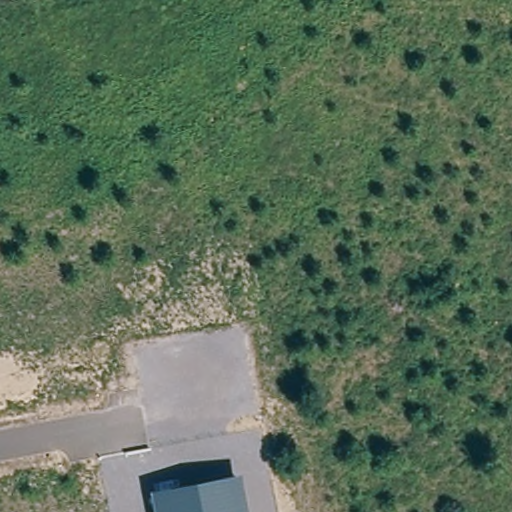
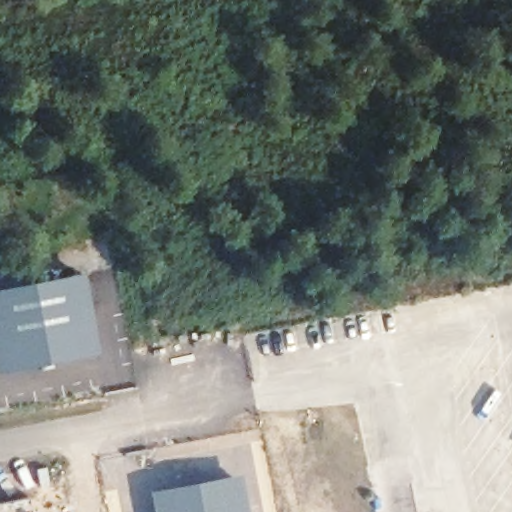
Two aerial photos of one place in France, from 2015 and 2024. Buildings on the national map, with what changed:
new [(83,277),(96,349),(0,368),(0,293),(83,277)]
unchanged [(240,473),(248,512),(154,512),(150,491),(240,473)]
new [(29,498),(32,512),(0,512),(0,503),(29,498)]

